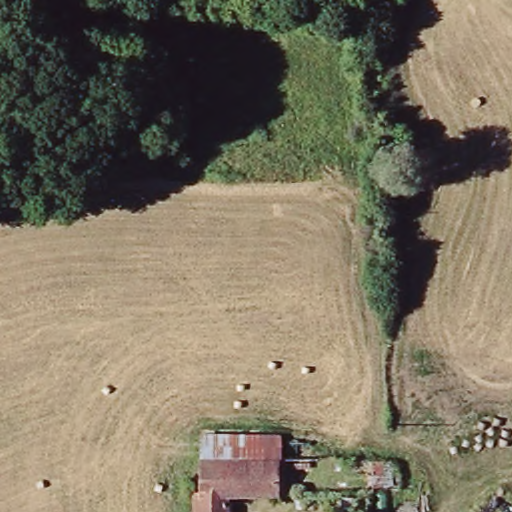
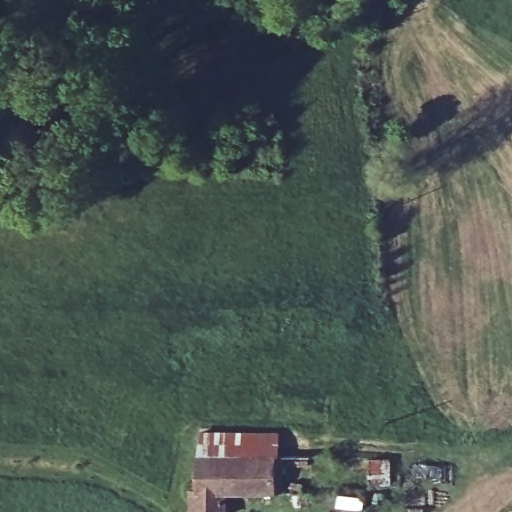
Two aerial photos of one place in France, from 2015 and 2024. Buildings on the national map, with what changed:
unchanged [(206,484),(207,451),(287,453),(287,493),(235,491),(234,512),(203,512),(203,487),(206,484)]

